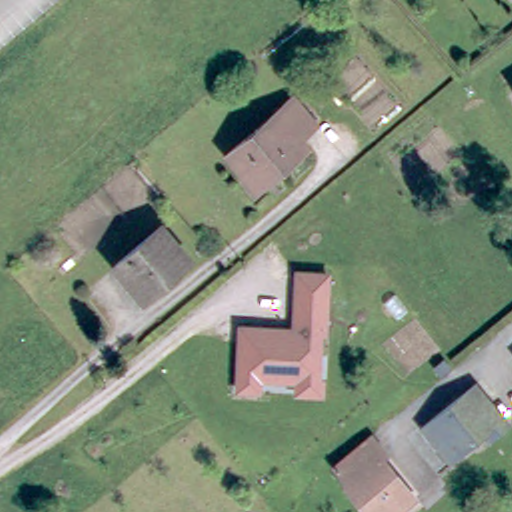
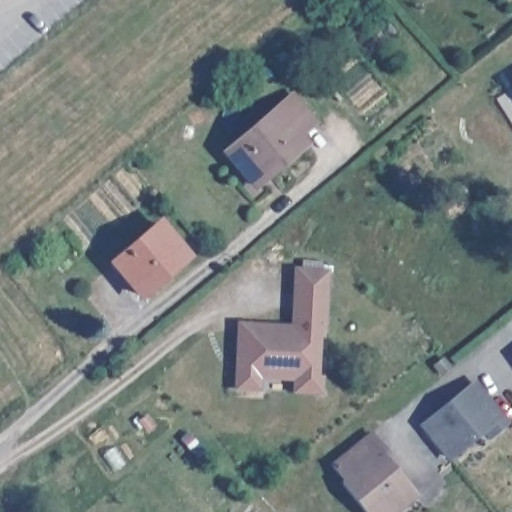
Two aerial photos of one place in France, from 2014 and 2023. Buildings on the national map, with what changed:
unchanged [(304,134),(311,143),(261,186),(232,151),(299,94),(320,120),(304,134)]
unchanged [(162,229),(190,261),(142,300),(116,268),(162,229)]
unchanged [(329,268),(325,336),(320,337),(320,376),(325,376),(324,394),(292,393),(292,380),(261,380),(260,391),(234,390),(237,321),(291,323),(292,267),(329,268)]
unchanged [(492,437),(487,432),(452,460),(425,426),(477,386),(508,424),(492,437)]
unchanged [(415,512),(364,512),(346,489),(350,486),(336,469),(374,438),(388,455),(384,459),(413,494),(421,507),(415,512)]

